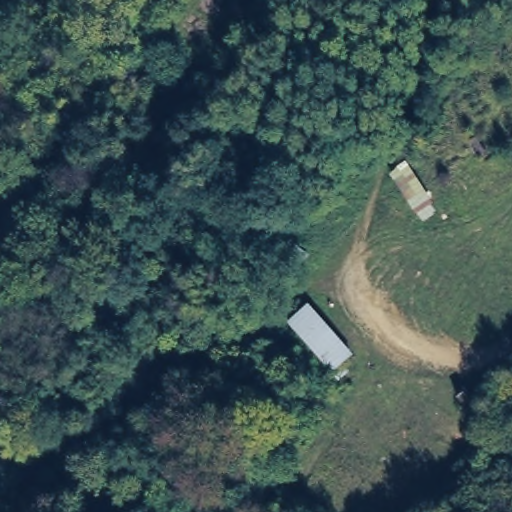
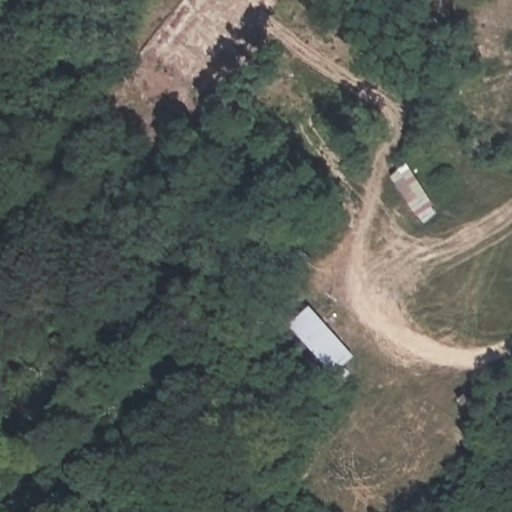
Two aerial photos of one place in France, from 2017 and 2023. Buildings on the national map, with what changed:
unchanged [(440,211),(420,224),(390,176),(409,162),(440,211)]
unchanged [(308,305),(318,316),(337,302),(369,340),(340,364),(349,373),(337,383),(285,325),(308,305)]

